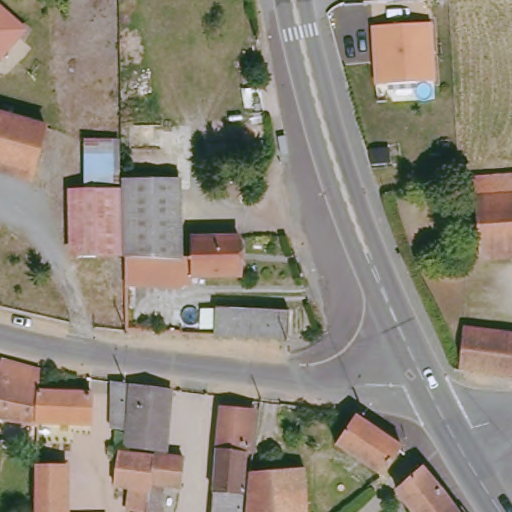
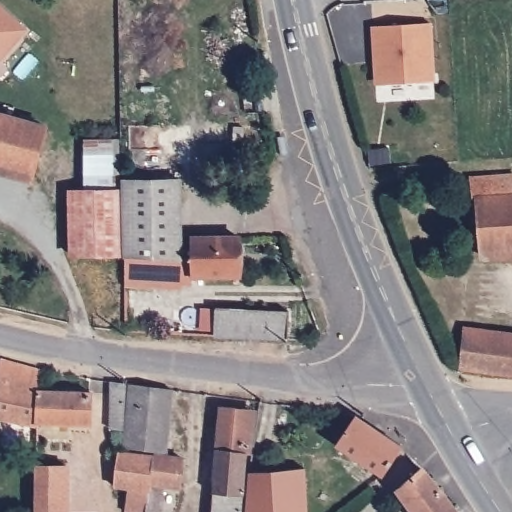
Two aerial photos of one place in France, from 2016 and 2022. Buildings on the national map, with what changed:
unchanged [(31,32),(0,62),(0,4),(31,32)]
unchanged [(433,24),(437,80),(375,85),(373,26),(433,24)]
unchanged [(42,124),(26,174),(0,167),(0,111),(42,124)]
unchanged [(84,138),(118,138),(118,190),(85,189),(84,138)]
unchanged [(122,175),(178,177),(181,253),(123,251),(122,175)]
unchanged [(116,250),(71,248),(71,188),(85,189),(118,190),(116,250)]
unchanged [(512,195),(512,248),(476,250),(473,197),(512,195)]
unchanged [(238,272),(189,272),(189,254),(191,235),(238,235),(238,272)]
unchanged [(189,278),(178,278),(178,283),(123,282),(123,251),(181,253),(189,254),(189,272),(189,278)]
unchanged [(209,305),(284,307),(284,335),(208,331),(209,305)]
unchanged [(512,333),(512,373),(459,366),(462,328),(512,333)]
unchanged [(30,427),(0,418),(0,360),(38,370),(35,390),(30,423),(30,427)]
unchanged [(108,425),(110,377),(123,380),(120,426),(108,425)]
unchanged [(166,385),(162,447),(121,443),(126,380),(166,385)]
unchanged [(35,390),(84,393),(83,426),(30,423),(35,390)]
unchanged [(213,461),(218,408),(248,411),(243,465),(213,461)]
unchanged [(397,445),(376,472),(331,441),(348,412),(397,445)]
unchanged [(125,506),(128,481),(113,480),(116,445),(119,446),(148,450),(141,507),(125,506)]
unchanged [(148,450),(181,453),(178,487),(161,486),(158,510),(141,509),(141,507),(148,450)]
unchanged [(237,512),(207,512),(213,461),(243,465),(237,512)]
unchanged [(53,466),(54,512),(30,512),(30,465),(53,466)]
unchanged [(302,468),(304,512),(244,512),(251,466),(302,468)]
unchanged [(421,470),(426,476),(443,498),(453,512),(412,512),(398,494),(421,470)]
unchanged [(141,512),(130,512),(131,511),(141,512)]

